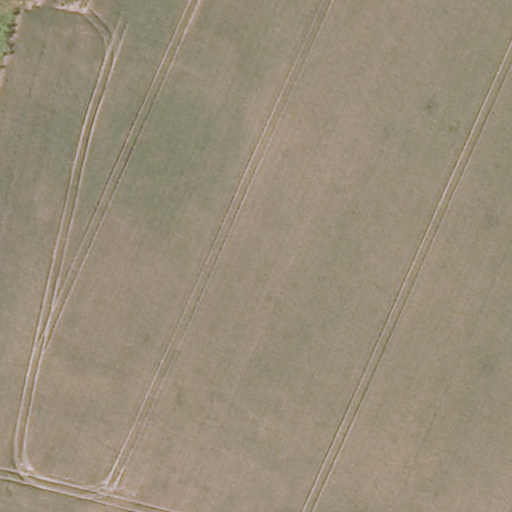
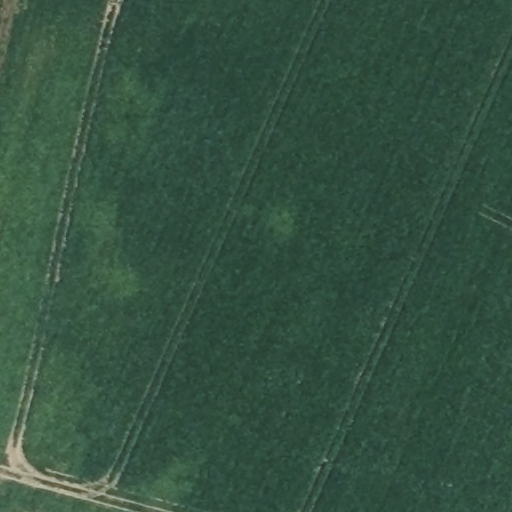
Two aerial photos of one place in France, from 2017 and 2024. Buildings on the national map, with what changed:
[]

